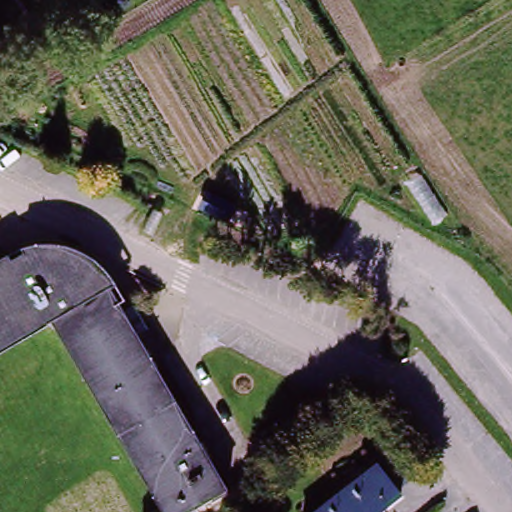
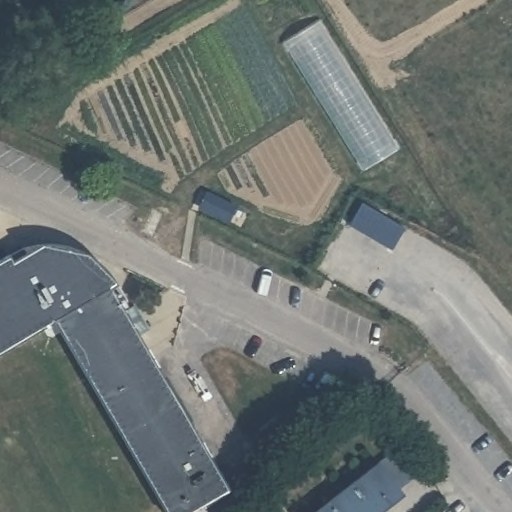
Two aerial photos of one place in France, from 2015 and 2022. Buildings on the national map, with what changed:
new [(362,171),(285,44),(320,22),(400,150),(362,171)]
unchanged [(102,270),(118,290),(112,295),(230,492),(200,512),(168,512),(57,326),(0,361),(0,263),(3,261),(24,252),(50,250),(75,255),(102,270)]
unchanged [(380,462),(404,494),(380,512),(314,512),(380,462)]

